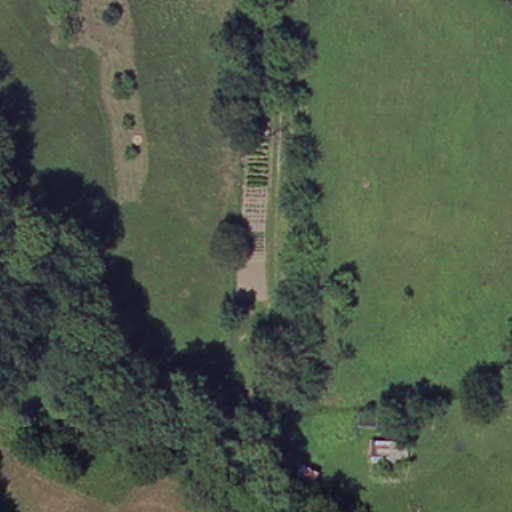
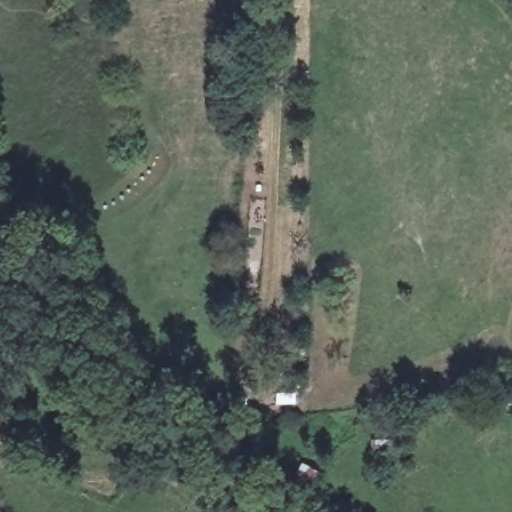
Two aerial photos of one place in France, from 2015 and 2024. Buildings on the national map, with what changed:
unchanged [(373,464),(374,442),(408,441),(408,461),(373,464)]

